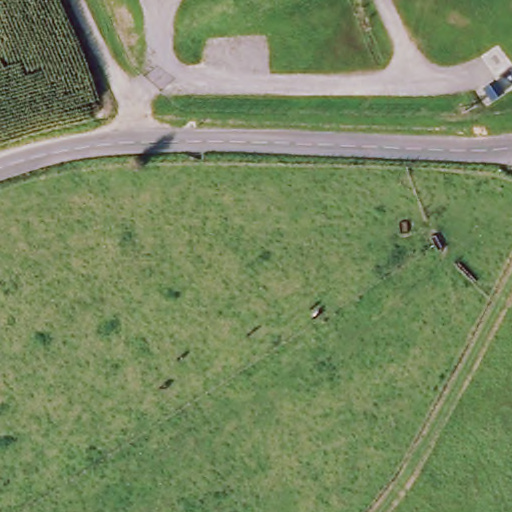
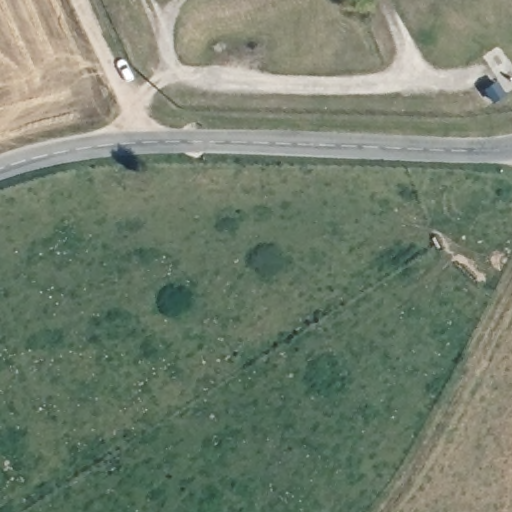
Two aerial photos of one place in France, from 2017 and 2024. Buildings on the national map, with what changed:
unchanged [(485,89),(497,81),(505,93),(492,101),(485,89)]

